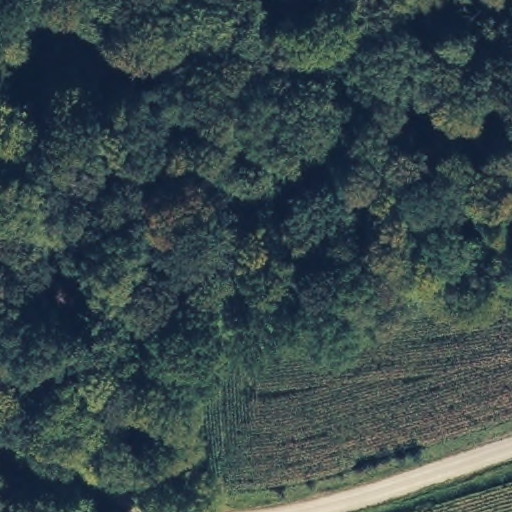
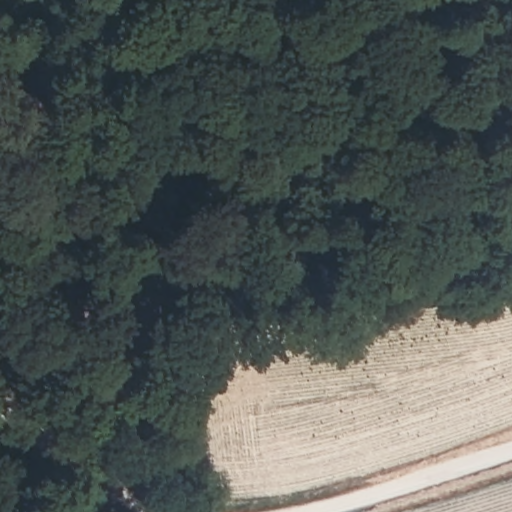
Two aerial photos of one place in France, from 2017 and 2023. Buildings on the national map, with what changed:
unchanged [(185,456),(195,488),(157,500),(147,466),(185,456)]

